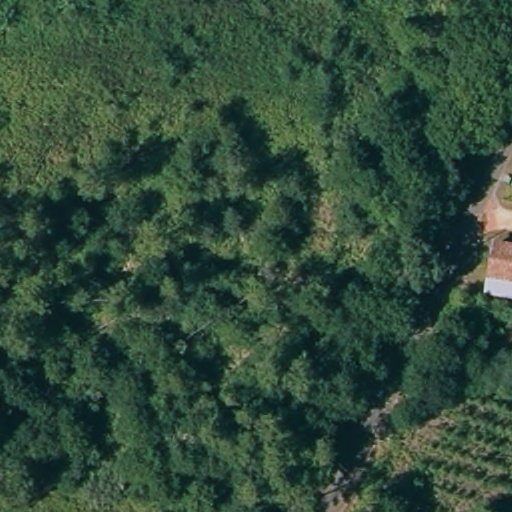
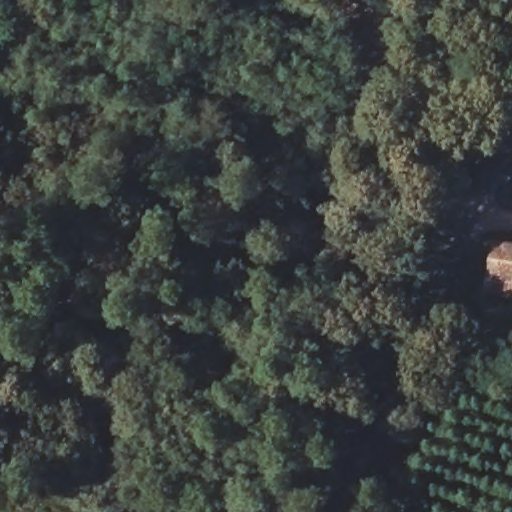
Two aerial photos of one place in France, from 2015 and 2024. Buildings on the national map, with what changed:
unchanged [(512,250),(512,282),(496,279),(502,248),(512,250)]
unchanged [(512,282),(512,302),(493,298),(496,279),(512,282)]

